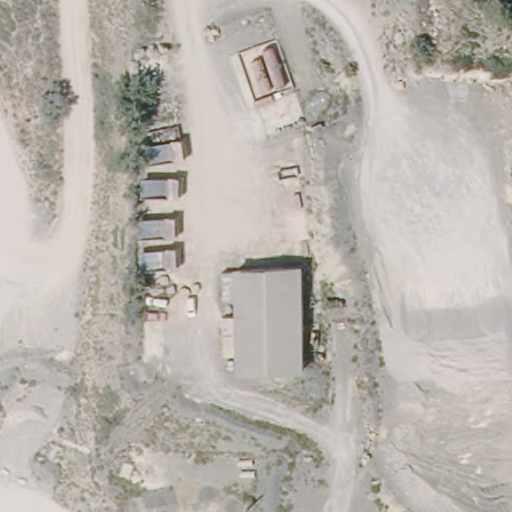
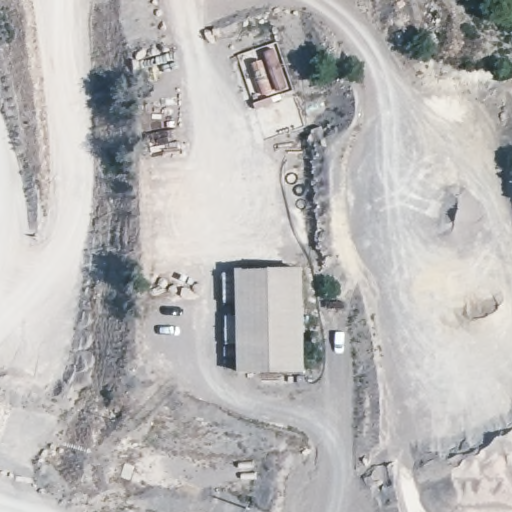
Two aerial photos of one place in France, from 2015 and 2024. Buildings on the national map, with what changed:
unchanged [(242,275),(267,274),(296,272),(298,336),(300,372),(245,375),(242,275)]

